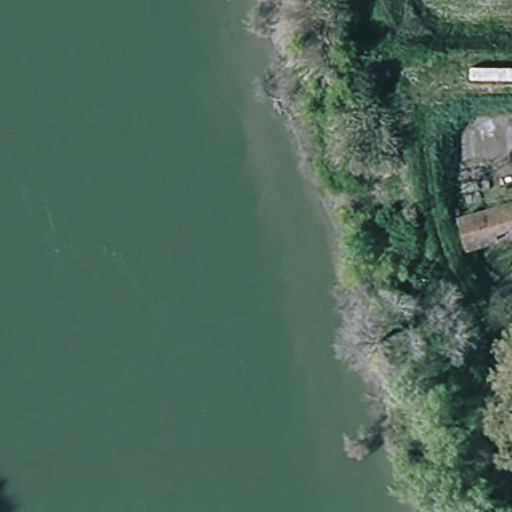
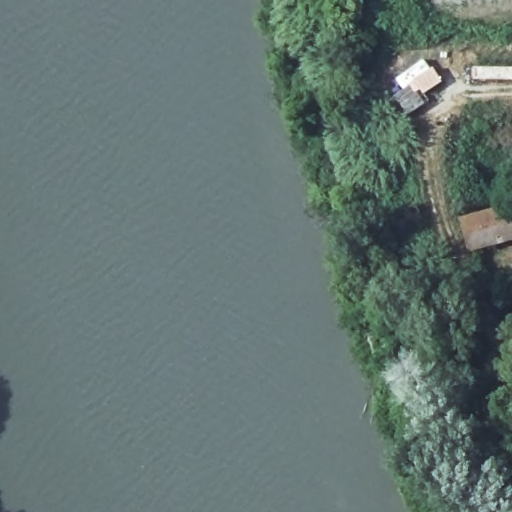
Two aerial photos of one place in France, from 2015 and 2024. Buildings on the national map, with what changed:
unchanged [(475,257),(464,223),(507,210),(512,209),(512,246),(475,257)]

